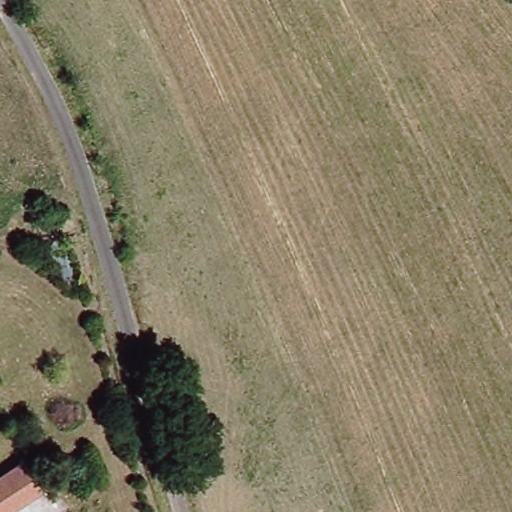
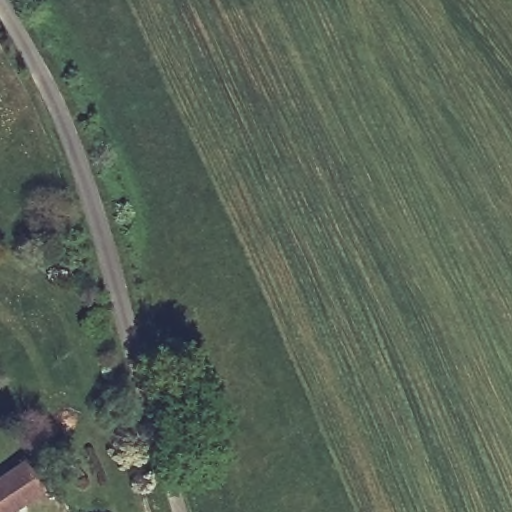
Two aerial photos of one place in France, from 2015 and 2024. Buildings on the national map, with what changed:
unchanged [(15,512),(0,512),(0,474),(23,459),(43,494),(15,512)]

